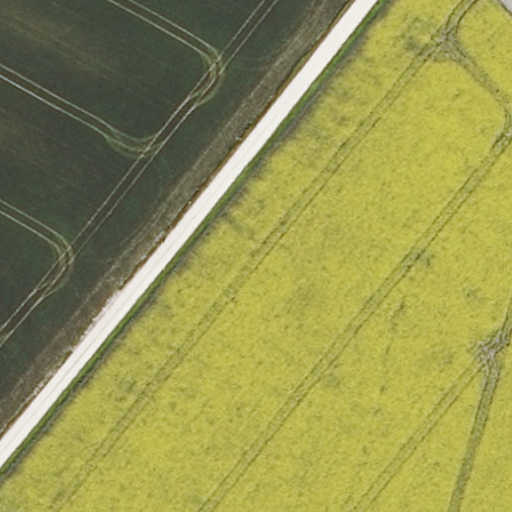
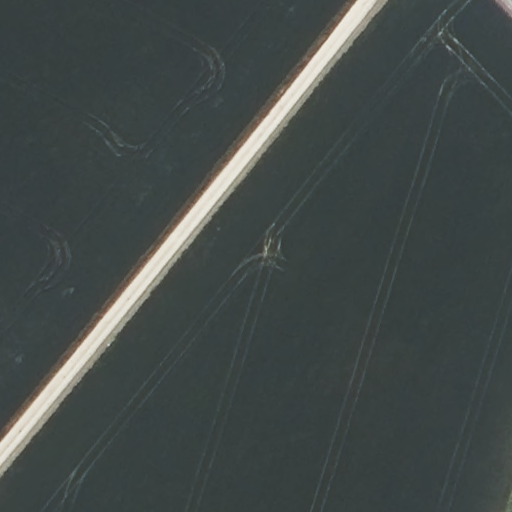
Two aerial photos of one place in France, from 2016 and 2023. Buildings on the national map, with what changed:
[]

